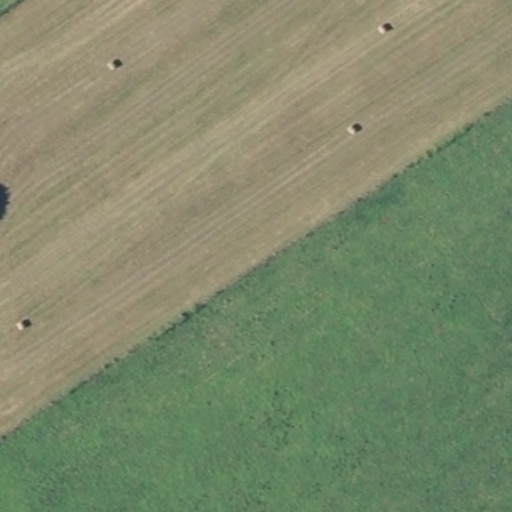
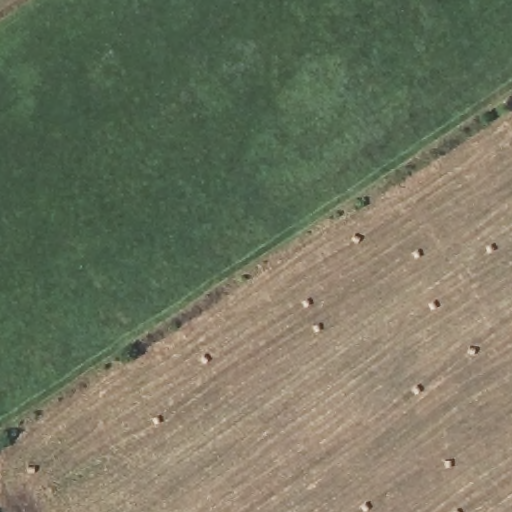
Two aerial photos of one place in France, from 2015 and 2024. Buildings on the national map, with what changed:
[]

